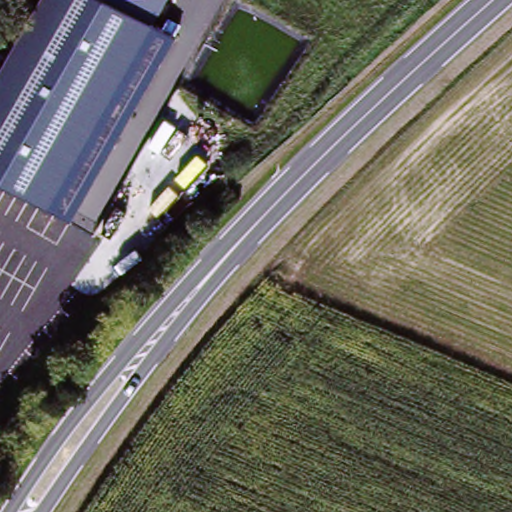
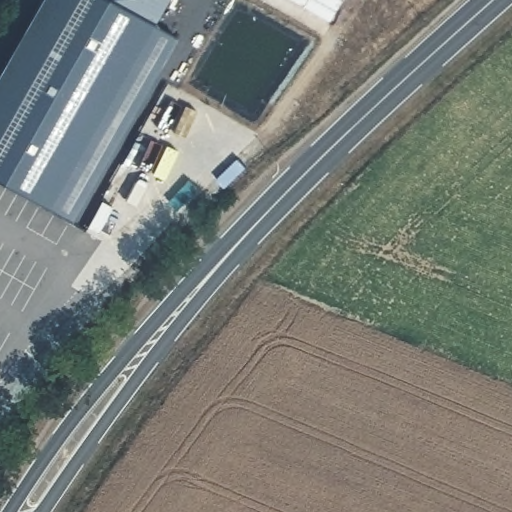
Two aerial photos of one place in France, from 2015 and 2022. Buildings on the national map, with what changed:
unchanged [(68,218),(0,180),(0,67),(38,0),(111,0),(173,36),(68,218)]
unchanged [(110,0),(173,0),(158,27),(110,0)]
new [(340,0),(328,19),(294,0),(340,0)]

